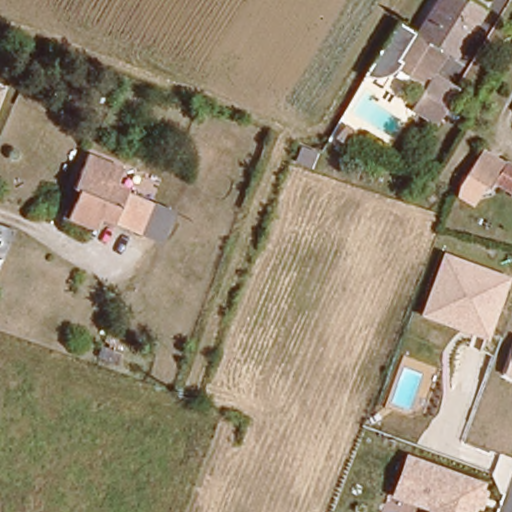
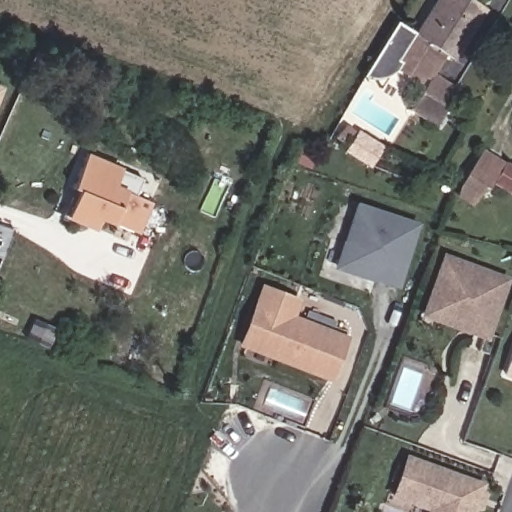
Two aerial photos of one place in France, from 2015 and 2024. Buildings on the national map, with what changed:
unchanged [(376,81),(367,75),(400,21),(417,31),(437,0),(483,0),(487,2),(455,53),(445,48),(436,67),(431,64),(425,74),(413,70),(406,76),(385,81),(376,81)]
unchanged [(436,120),(412,106),(431,71),(456,86),(436,120)]
unchanged [(485,150),(505,162),(489,189),(469,177),(480,157),(485,150)]
unchanged [(150,237),(130,231),(101,222),(98,232),(69,222),(70,219),(57,215),(65,197),(60,196),(74,158),(121,174),(116,190),(140,197),(138,206),(157,213),(150,237)]
new [(400,288),(377,281),(376,283),(333,270),(355,202),(421,222),(400,288)]
unchanged [(15,232),(7,252),(0,249),(0,228),(15,232)]
unchanged [(420,317),(443,251),(512,276),(512,282),(489,342),(420,317)]
new [(239,346),(262,284),(301,300),(295,316),(350,336),(331,382),(239,346)]
unchanged [(512,357),(512,380),(505,377),(512,357)]
unchanged [(430,512),(392,497),(406,455),(488,483),(477,512),(430,512)]

